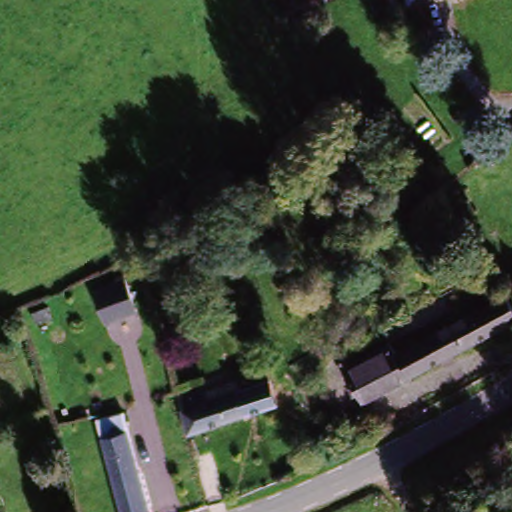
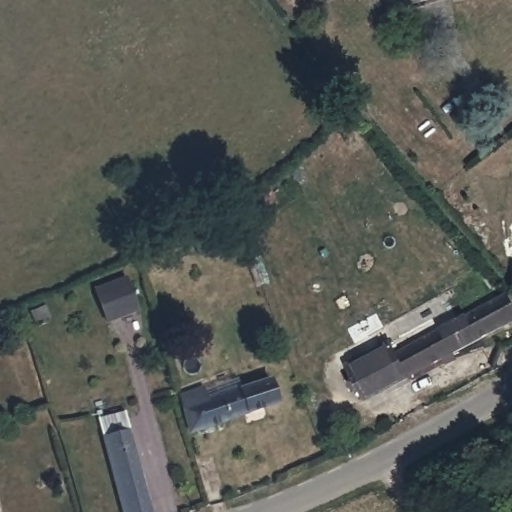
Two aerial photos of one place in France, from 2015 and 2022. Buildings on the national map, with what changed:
unchanged [(405,0),(418,0),(406,4),(405,0)]
unchanged [(97,291),(127,278),(140,310),(111,322),(97,291)]
unchanged [(512,307),(512,333),(374,404),(354,362),(395,342),(400,355),(445,332),(438,318),(460,307),(467,321),(506,299),(512,307)]
unchanged [(57,306),(63,317),(50,325),(44,313),(57,306)]
unchanged [(177,394),(217,383),(245,375),(252,397),(224,406),(185,417),(177,394)]
unchanged [(101,422),(125,416),(131,437),(151,512),(125,512),(101,422)]

